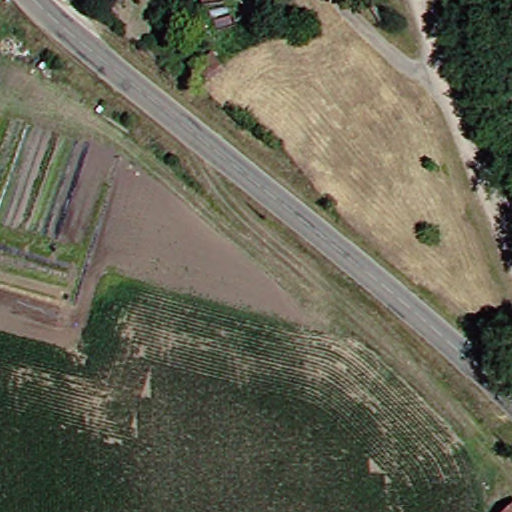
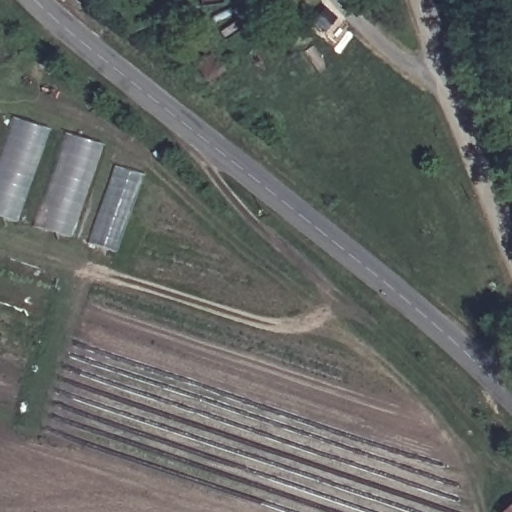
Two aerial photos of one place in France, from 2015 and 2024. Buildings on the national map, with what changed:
new [(50,131),(18,223),(0,216),(0,155),(13,119),(50,131)]
new [(66,135),(104,146),(71,238),(33,227),(66,135)]
new [(86,244),(113,166),(144,175),(116,252),(86,244)]
unchanged [(512,506),(512,512),(505,512),(512,506)]

